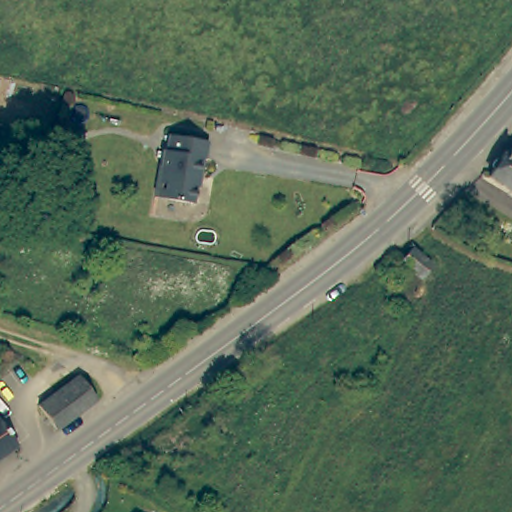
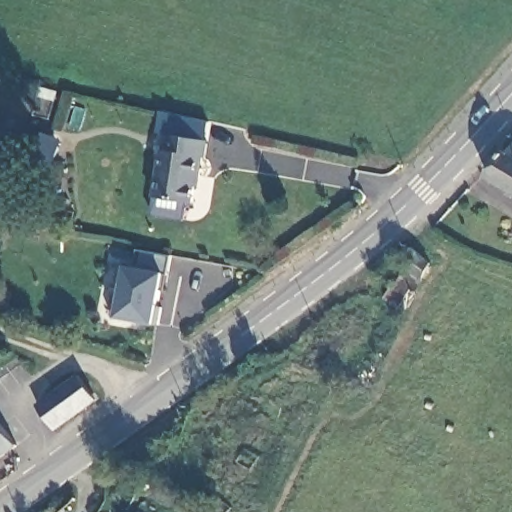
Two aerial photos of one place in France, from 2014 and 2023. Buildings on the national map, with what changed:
unchanged [(164,135),(203,144),(200,159),(197,158),(194,172),(193,177),(190,177),(184,204),(147,196),(155,162),(159,147),(161,149),(164,135)]
unchanged [(492,176),(512,141),(512,187),(492,176)]
unchanged [(34,154),(53,162),(38,197),(19,191),(34,154)]
unchanged [(377,293),(393,278),(382,267),(404,246),(421,263),(409,292),(392,308),(377,293)]
new [(127,267),(134,267),(138,251),(170,256),(165,275),(155,326),(116,319),(127,267)]
unchanged [(96,398),(56,427),(40,402),(47,397),(79,375),(96,398)]
unchanged [(0,460),(0,421),(20,448),(0,460)]

